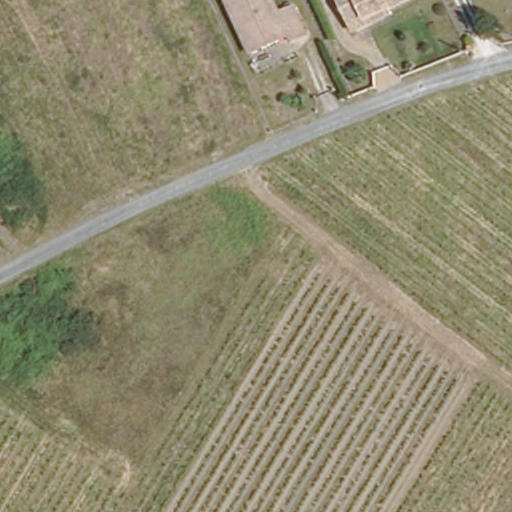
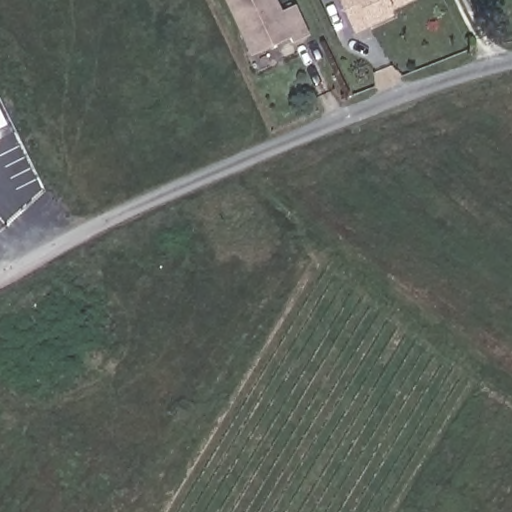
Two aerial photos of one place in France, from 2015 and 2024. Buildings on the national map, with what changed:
unchanged [(295,6),(307,29),(291,37),(294,42),(256,60),(227,0),(275,0),(282,13),(295,6)]
unchanged [(353,30),(338,0),(404,0),(388,8),(391,13),(369,23),(353,30)]

